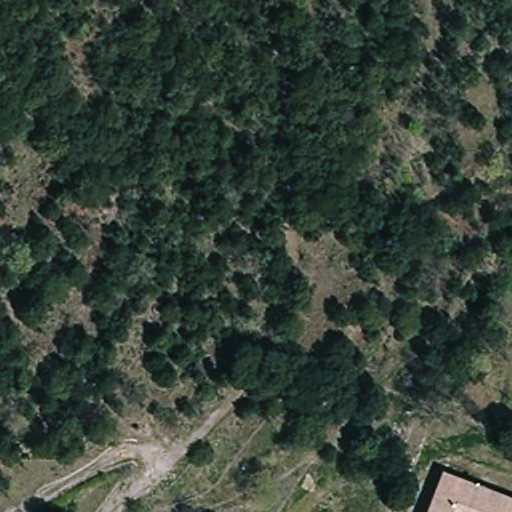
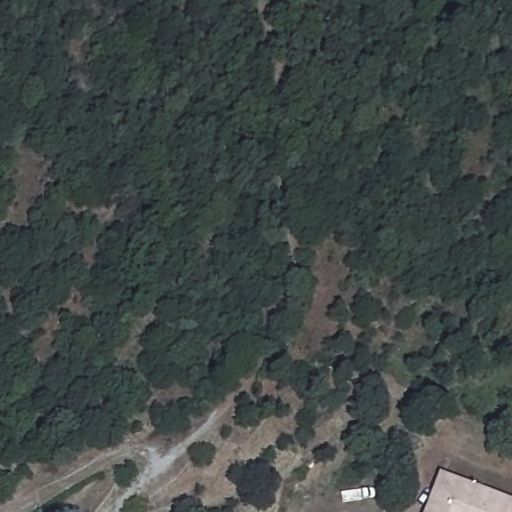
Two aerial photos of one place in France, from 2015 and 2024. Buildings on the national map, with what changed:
unchanged [(455,472),(512,499),(512,512),(435,512),(455,472)]

